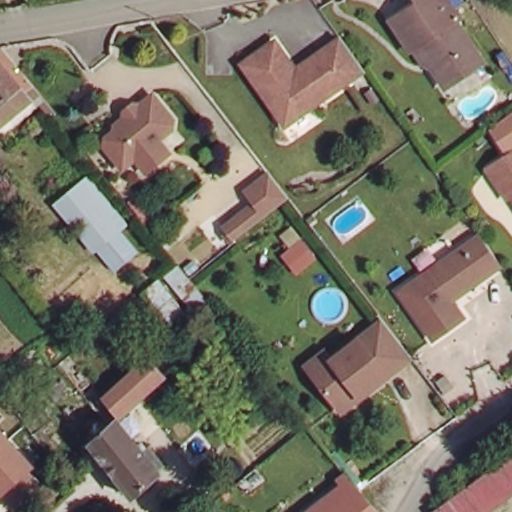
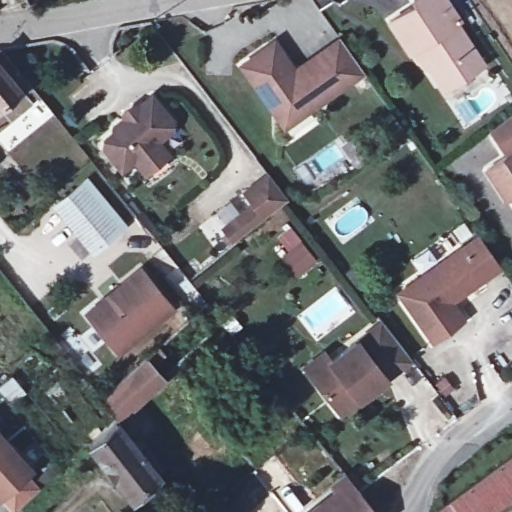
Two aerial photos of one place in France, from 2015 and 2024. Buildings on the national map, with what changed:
unchanged [(464,21),(460,24),(487,66),(451,90),(446,87),(435,71),(441,67),(427,46),(414,54),(395,23),(422,6),(418,0),(450,0),(464,21)]
unchanged [(0,1),(5,8),(0,9),(0,1)]
unchanged [(245,67),(277,44),(301,77),(311,70),(308,65),(331,48),(344,39),(363,66),(368,72),(354,81),(288,128),(245,67)]
unchanged [(0,126),(0,45),(2,45),(30,81),(32,83),(25,89),(32,98),(0,126)]
unchanged [(147,171),(136,157),(124,167),(106,145),(106,137),(115,130),(115,125),(125,117),(125,111),(135,102),(140,104),(153,94),(174,119),(174,127),(159,138),(170,152),(147,171)]
unchanged [(504,153),(488,127),(512,111),(512,148),(504,153)]
unchanged [(510,200),(499,184),(489,168),(512,152),(512,198),(510,200)]
unchanged [(225,235),(244,220),(241,216),(253,205),(244,194),(269,171),(290,199),(234,245),(225,235)]
unchanged [(91,196),(127,242),(106,257),(71,211),(91,196)]
unchanged [(404,299),(484,242),(505,272),(487,285),(482,278),(450,301),(467,325),(437,347),(404,299)]
new [(175,307),(117,355),(82,313),(140,265),(175,307)]
demolished [(159,280),(177,302),(163,315),(145,292),(159,280)]
unchanged [(341,412),(312,375),(306,367),(325,352),(331,361),(383,321),(412,358),(379,383),(368,392),(341,412)]
unchanged [(148,359),(164,380),(140,400),(119,419),(102,399),(103,398),(148,359)]
unchanged [(118,420),(160,476),(133,498),(91,444),(118,420)]
unchanged [(0,441),(0,428),(7,436),(0,441)]
unchanged [(30,462),(23,468),(36,483),(13,503),(0,489),(0,441),(7,436),(30,462)]
unchanged [(491,512),(439,512),(512,457),(512,496),(491,512)]
unchanged [(378,512),(303,512),(329,492),(326,486),(345,471),(360,490),(378,512)]

